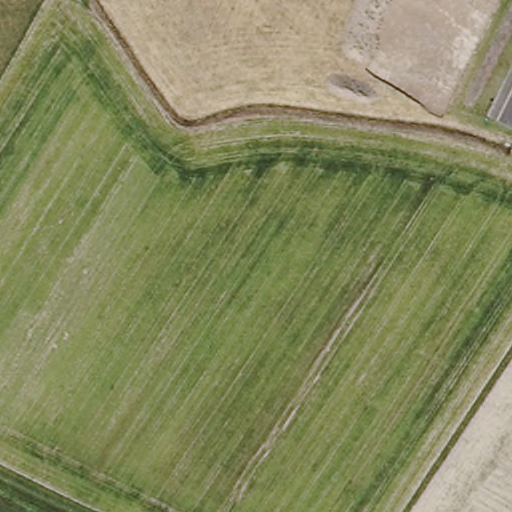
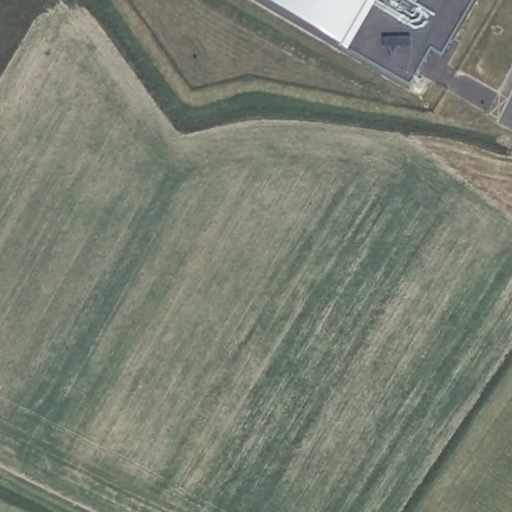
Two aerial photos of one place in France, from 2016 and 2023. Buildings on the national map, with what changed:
new [(431,52),(410,90),(349,55),(349,57),(340,52),(340,51),(254,0),(475,0),(442,58),(431,52)]

